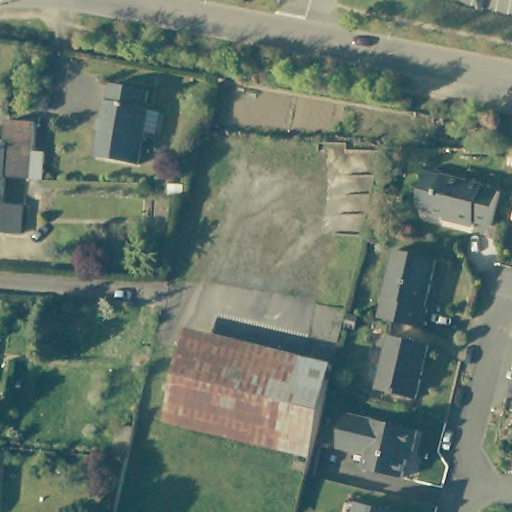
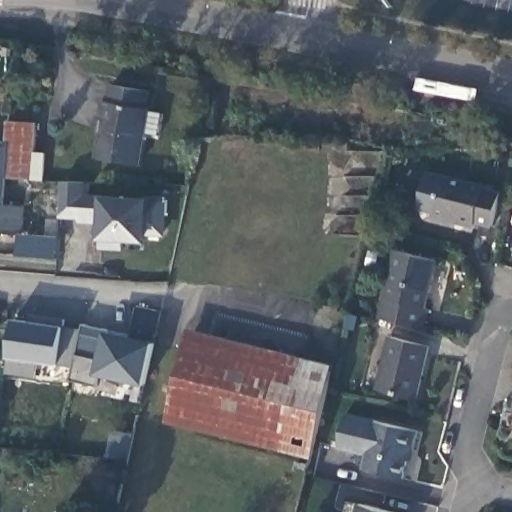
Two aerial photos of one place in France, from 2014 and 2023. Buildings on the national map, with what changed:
unchanged [(148,126),(140,169),(98,161),(108,105),(110,105),(113,88),(149,95),(146,112),(150,113),(148,126)]
unchanged [(22,239),(0,238),(0,147),(4,147),(5,125),(34,127),(32,155),(44,157),(39,186),(29,185),(5,184),(4,199),(3,211),(24,213),(22,239)]
unchanged [(511,136),(512,136),(512,150),(510,150),(511,136)]
unchanged [(502,230),(486,226),(484,231),(466,226),(467,224),(444,218),(444,217),(427,213),(436,177),(452,181),(453,180),(511,194),(502,230)]
new [(87,182),(86,194),(102,195),(151,197),(168,197),(166,236),(148,234),(147,242),(126,241),(125,250),(102,249),(106,239),(99,239),(101,223),(80,222),(81,218),(62,217),(64,181),(87,182)]
unchanged [(392,252),(434,263),(422,309),(425,310),(419,332),(375,320),(392,252)]
new [(64,363),(57,363),(55,376),(10,370),(17,318),(43,323),(45,313),(69,318),(64,363)]
new [(149,386),(103,375),(99,385),(72,379),(86,324),(109,330),(159,341),(149,386)]
unchanged [(321,396),(306,458),(157,422),(181,329),(329,367),(321,396)]
unchanged [(430,348),(416,400),(378,389),(391,337),(430,348)]
unchanged [(417,438),(412,458),(409,457),(402,484),(363,474),(366,460),(338,452),(347,419),(417,438)]
unchanged [(354,512),(356,505),(380,512),(354,512)]

